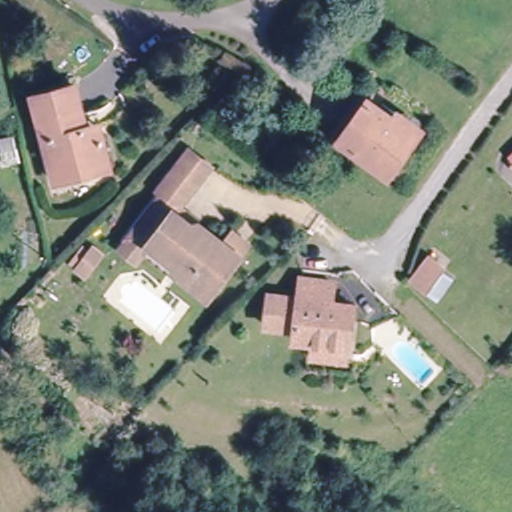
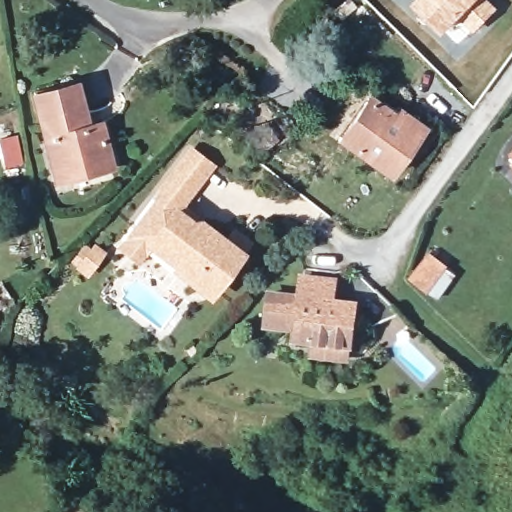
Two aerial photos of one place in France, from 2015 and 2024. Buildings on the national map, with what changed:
new [(498,7),(457,47),(411,2),(412,0),(491,0),(498,7)]
unchanged [(59,181),(39,102),(78,91),(86,124),(102,120),(115,165),(59,181)]
unchanged [(387,175),(340,136),(372,99),(392,116),(398,110),(423,130),(403,155),(387,175)]
unchanged [(242,255),(199,298),(145,245),(128,261),(114,247),(163,198),(159,194),(193,160),(213,175),(179,210),(221,252),(230,242),(242,255)]
unchanged [(95,250),(77,267),(70,261),(89,242),(95,250)]
unchanged [(318,352),(318,339),(298,340),(298,330),(270,330),(269,300),(298,299),(297,279),(329,278),(330,298),(352,298),(352,338),(352,352),(318,352)]

